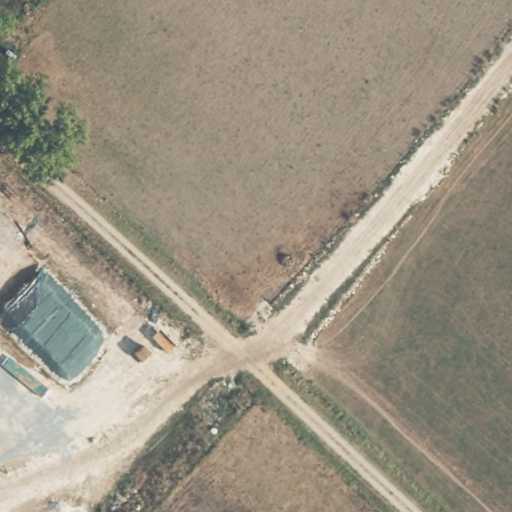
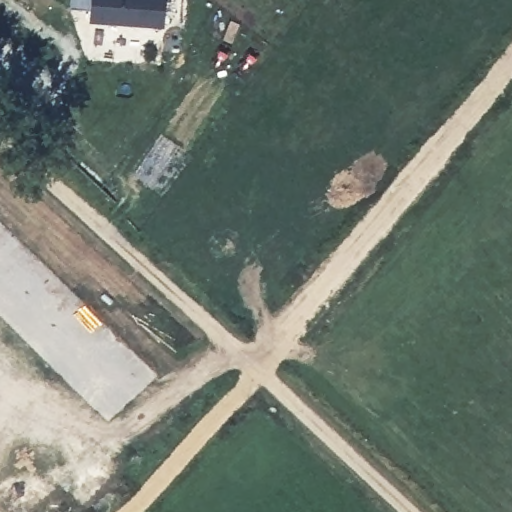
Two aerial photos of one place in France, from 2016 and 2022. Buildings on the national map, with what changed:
new [(166,0),(164,26),(90,20),(91,0),(166,0)]

